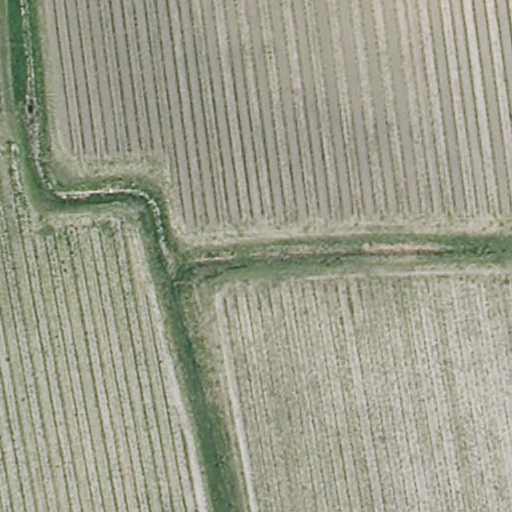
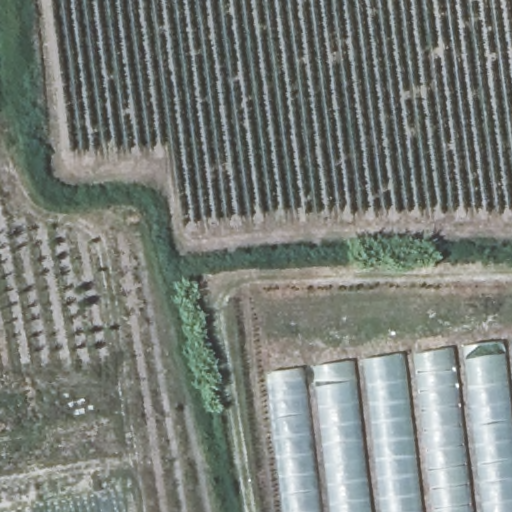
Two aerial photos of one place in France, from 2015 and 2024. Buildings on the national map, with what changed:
new [(512,340),(512,512),(284,512),(267,373),(512,340)]

